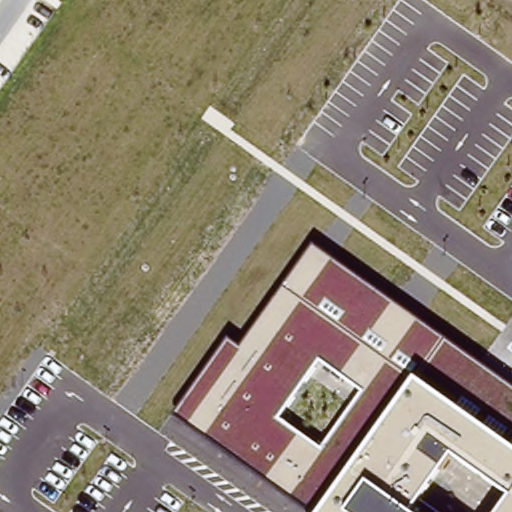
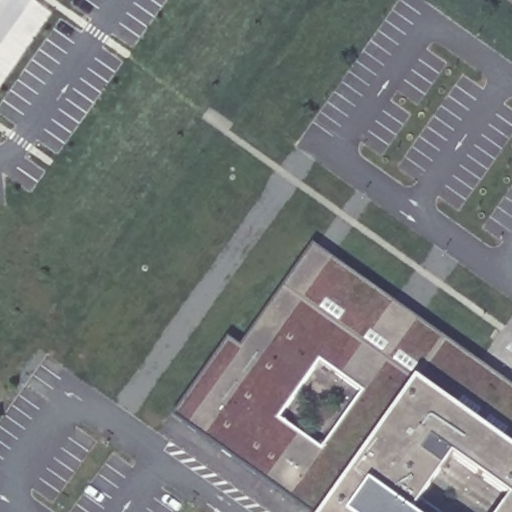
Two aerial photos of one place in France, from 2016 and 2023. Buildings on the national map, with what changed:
unchanged [(172,415),(228,337),(241,347),(312,243),(512,384),(512,512),(496,512),(509,496),(452,456),(422,502),(437,512),(314,512),(172,415)]

